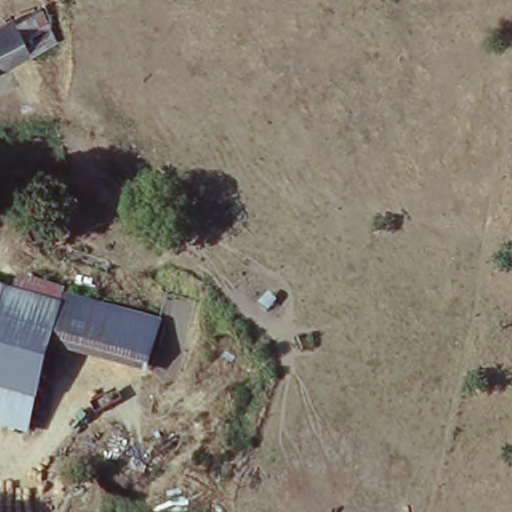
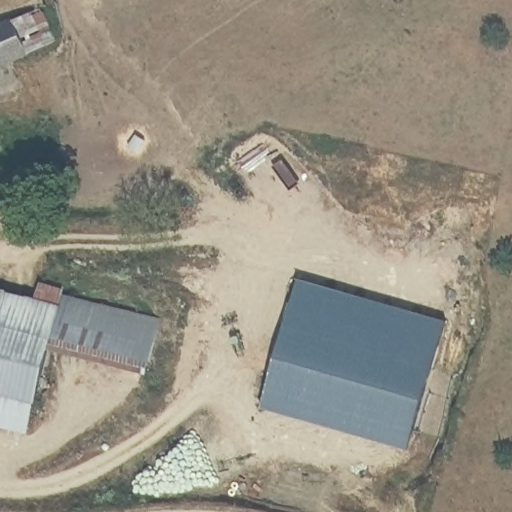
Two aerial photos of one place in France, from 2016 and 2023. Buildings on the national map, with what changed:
unchanged [(12,23),(42,11),(56,42),(29,56),(0,69),(0,23),(10,19),(12,23)]
new [(406,450),(262,407),(298,281),(442,322),(406,450)]
unchanged [(62,291),(164,318),(148,375),(54,348),(27,438),(0,430),(0,287),(59,302),(62,291)]

